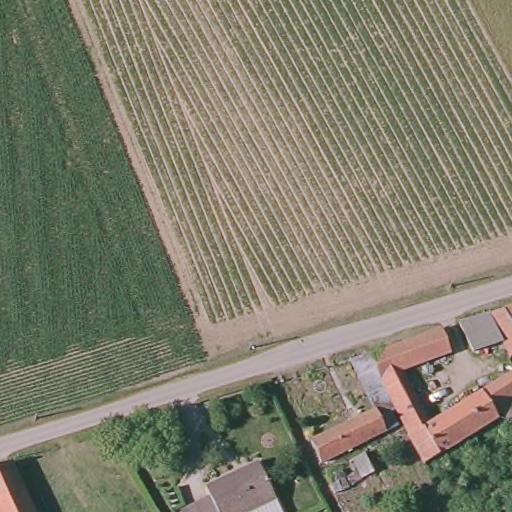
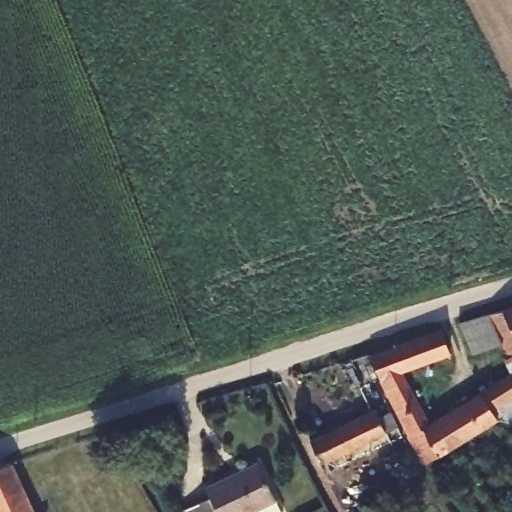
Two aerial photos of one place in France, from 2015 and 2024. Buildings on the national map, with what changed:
unchanged [(510,311),(512,310),(512,313),(510,311)]
unchanged [(509,347),(491,317),(510,311),(512,313),(512,352),(509,347)]
unchanged [(491,317),(509,347),(481,358),(465,324),(491,317)]
unchanged [(405,412),(373,352),(447,330),(457,360),(410,376),(438,424),(512,380),(512,406),(500,413),(506,425),(433,466),(405,412)]
unchanged [(373,352),(405,412),(398,416),(405,428),(330,470),(317,446),(381,410),(351,358),(373,352)]
unchanged [(512,406),(512,429),(509,431),(506,425),(500,413),(512,406)]
unchanged [(371,454),(384,476),(370,484),(357,462),(371,454)]
unchanged [(186,510),(196,504),(210,497),(205,486),(255,460),(283,512),(188,512),(186,510)]
unchanged [(35,512),(0,512),(0,470),(13,465),(35,512)]

